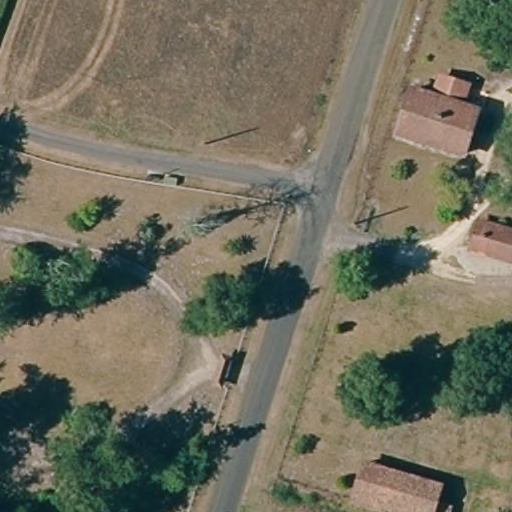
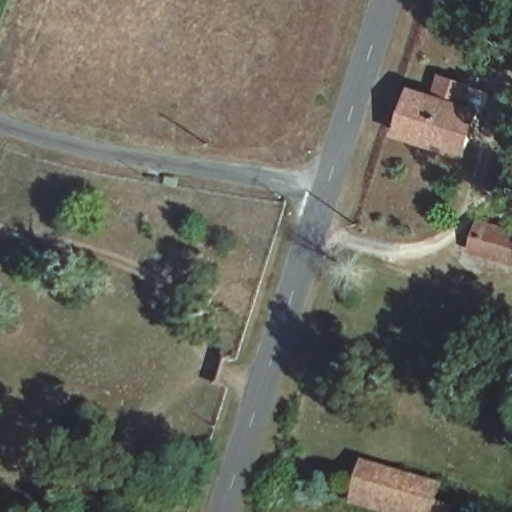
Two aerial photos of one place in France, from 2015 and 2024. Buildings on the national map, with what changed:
unchanged [(463,158),(396,140),(411,93),(438,101),(443,84),(470,91),(466,109),(476,112),(463,158)]
unchanged [(512,232),(512,251),(509,259),(475,250),(482,224),(512,232)]
unchanged [(389,512),(352,501),(366,462),(440,487),(433,503),(458,509),(457,512),(389,512)]

